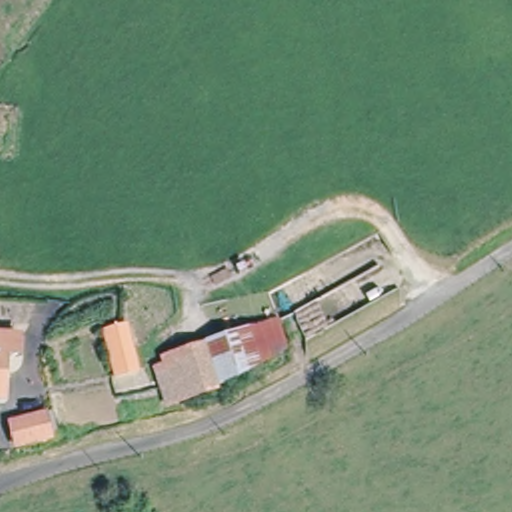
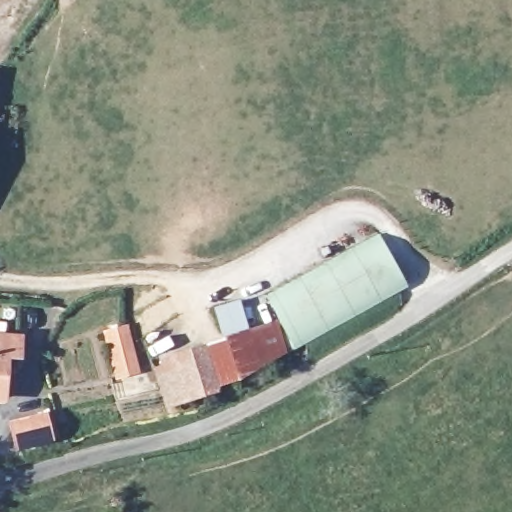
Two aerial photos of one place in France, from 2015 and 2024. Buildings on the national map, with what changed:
new [(279,316),(269,295),(380,233),(407,286),(289,347),(279,316)]
unchanged [(289,347),(224,385),(167,403),(156,357),(279,316),(289,347)]
unchanged [(23,323),(22,341),(9,341),(7,383),(0,383),(0,322),(23,323)]
unchanged [(104,332),(124,327),(136,371),(116,377),(104,332)]
unchanged [(51,441),(19,449),(13,426),(44,417),(51,441)]

